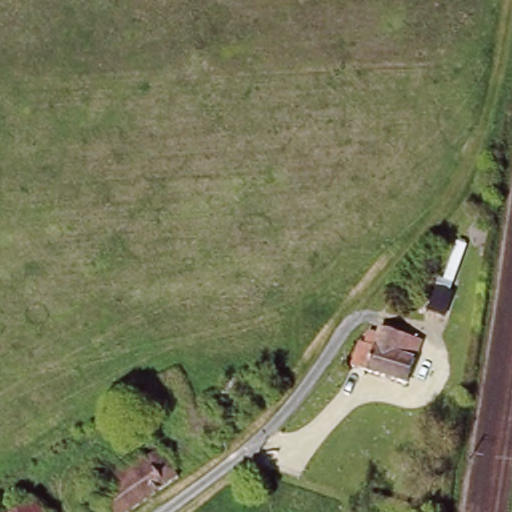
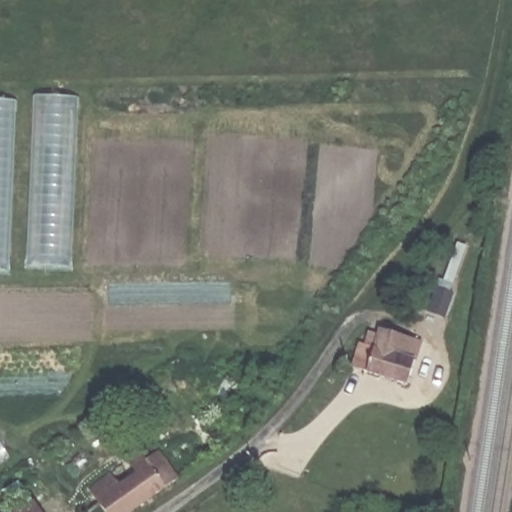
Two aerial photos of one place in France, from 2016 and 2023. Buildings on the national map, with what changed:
new [(25,266),(31,94),(76,96),(69,267),(25,266)]
new [(7,271),(0,271),(0,99),(16,100),(7,271)]
new [(440,278),(445,280),(458,242),(467,245),(451,292),(454,293),(446,317),(429,310),(437,287),(440,278)]
unchanged [(414,382),(358,367),(364,342),(371,344),(374,332),(383,334),(384,328),(425,341),(414,382)]
unchanged [(96,512),(83,495),(147,445),(173,481),(132,512),(96,512)]
unchanged [(8,512),(29,497),(39,512),(8,512)]

